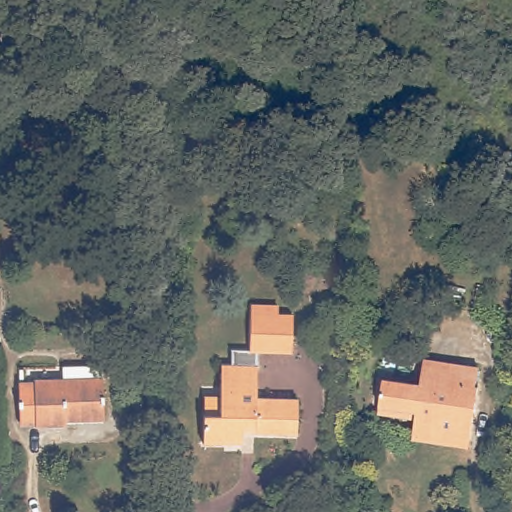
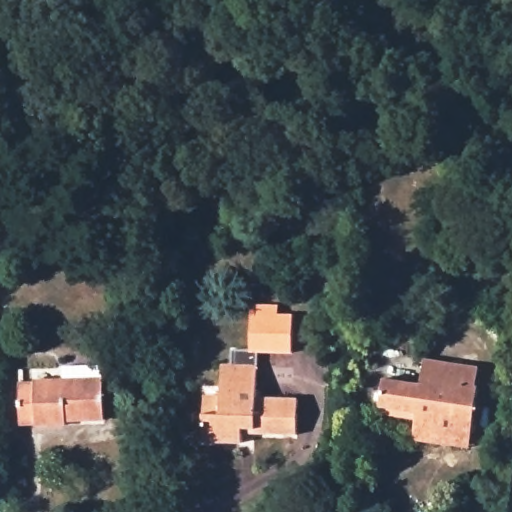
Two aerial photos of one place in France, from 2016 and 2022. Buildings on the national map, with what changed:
unchanged [(294,307),(294,345),(261,345),(252,347),(250,305),(294,307)]
unchanged [(259,395),(301,395),(299,430),(258,427),(258,420),(245,419),(244,436),(205,433),(206,405),(226,406),(228,363),(233,364),(234,347),(252,347),(261,345),(259,395)]
unchanged [(436,432),(435,441),(417,438),(420,409),(383,402),(386,377),(425,382),(428,358),(483,367),(473,437),(436,432)]
unchanged [(65,417),(65,426),(34,426),(34,420),(16,420),(16,382),(33,382),(33,375),(64,375),(64,363),(103,363),(103,417),(65,417)]

